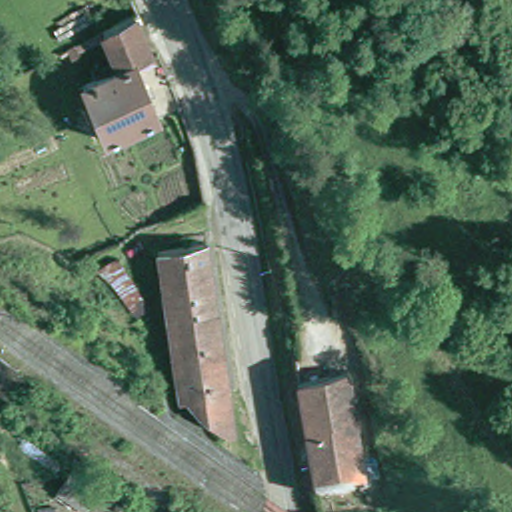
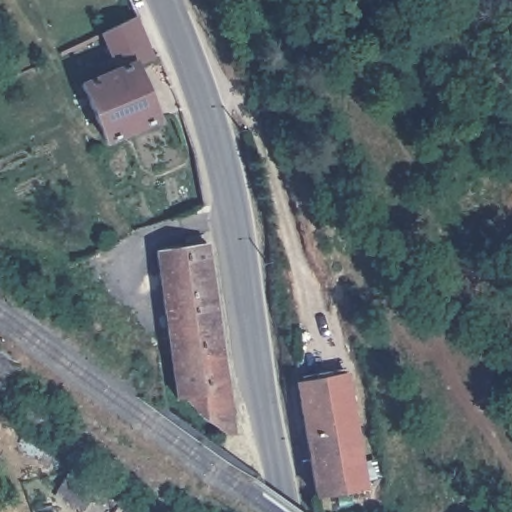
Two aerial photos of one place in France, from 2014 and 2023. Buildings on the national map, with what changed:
unchanged [(135,17),(154,55),(134,64),(155,117),(104,139),(81,84),(119,67),(105,32),(135,17)]
unchanged [(212,247),(234,394),(204,398),(186,400),(165,253),(212,247)]
unchanged [(369,488),(317,495),(299,380),(347,372),(369,488)]
unchanged [(240,436),(232,437),(207,418),(204,398),(234,394),(240,436)]
unchanged [(67,478),(94,498),(86,508),(59,489),(67,478)]

